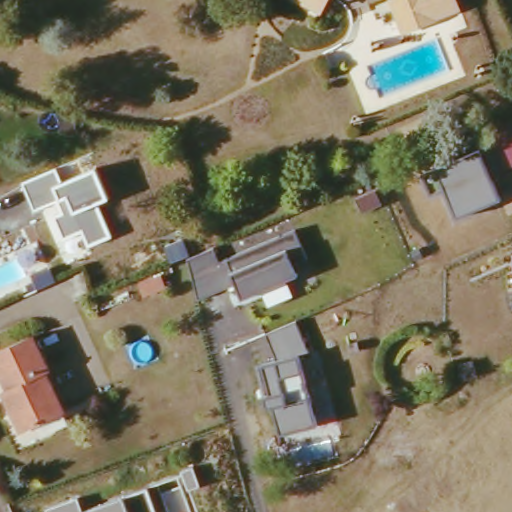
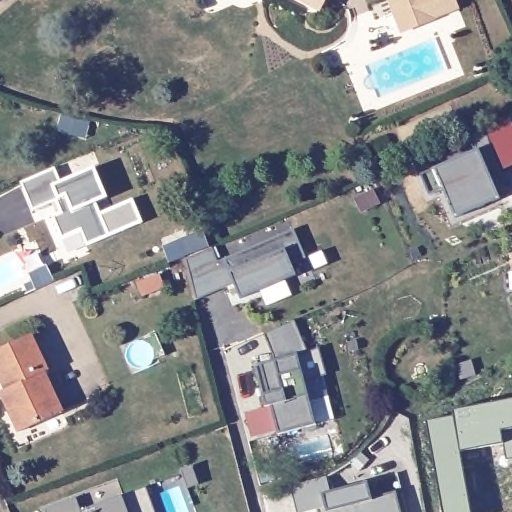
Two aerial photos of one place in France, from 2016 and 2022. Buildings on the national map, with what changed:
unchanged [(320,0),(326,0),(324,2),(320,0)]
unchanged [(465,9),(404,33),(397,34),(391,16),(398,12),(393,0),(463,0),(465,9)]
unchanged [(56,170),(63,183),(95,169),(108,198),(96,203),(110,236),(89,245),(82,230),(63,238),(55,217),(63,213),(60,199),(35,210),(25,184),(56,170)]
unchanged [(185,259),(211,248),(217,261),(293,230),(303,258),(290,265),(294,275),(239,298),(231,279),(194,300),(185,259)]
unchanged [(511,254),(512,254),(512,269),(511,254)]
unchanged [(245,412),(267,406),(265,395),(270,393),(263,364),(276,360),(266,334),(296,322),(308,352),(298,355),(315,424),(281,433),(251,437),(245,412)]
unchanged [(0,353),(36,334),(52,367),(50,375),(66,411),(26,432),(11,402),(15,400),(0,370),(0,353)]
new [(455,364),(470,360),(473,374),(458,378),(455,364)]
new [(455,416),(454,410),(512,400),(512,460),(507,461),(505,444),(462,451),(470,512),(443,512),(428,420),(455,416)]
unchanged [(82,511),(122,497),(147,488),(184,471),(194,467),(200,486),(188,489),(197,512),(47,512),(47,510),(77,499),(82,511)]
new [(304,512),(297,512),(290,485),(327,478),(331,492),(366,483),(371,500),(395,493),(401,512),(319,512),(318,509),(304,512)]

